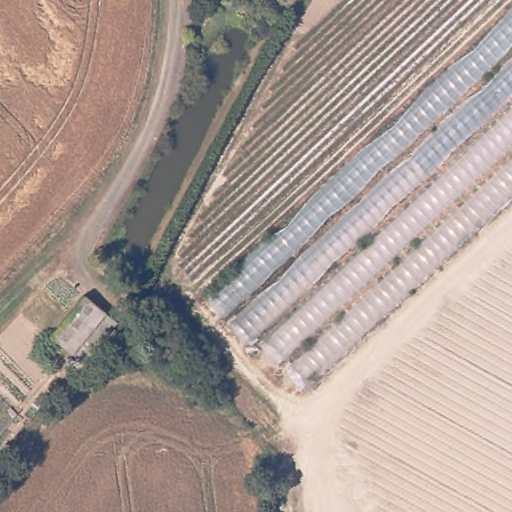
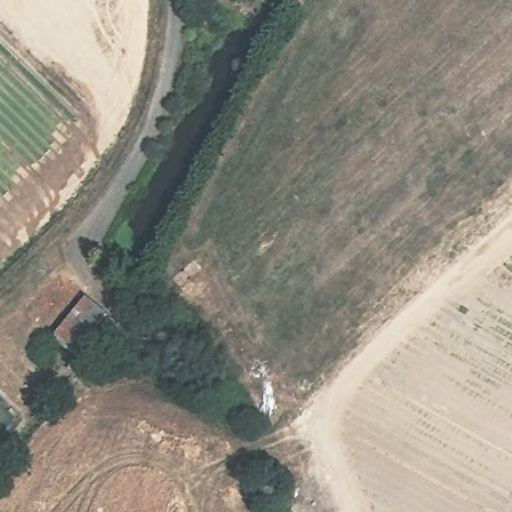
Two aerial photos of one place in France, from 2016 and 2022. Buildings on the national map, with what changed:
demolished [(512,193),(347,349),(324,324),(285,358),(262,336),(250,345),(222,318),(207,297),(512,9),(512,193)]
unchanged [(105,313),(71,349),(55,334),(90,300),(105,313)]

